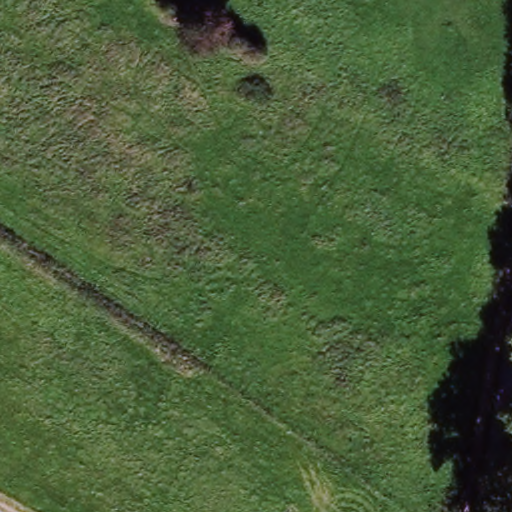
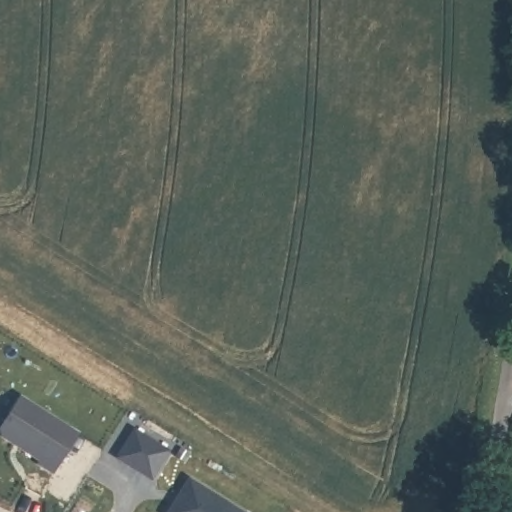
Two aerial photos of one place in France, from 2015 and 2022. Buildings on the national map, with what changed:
new [(43,460),(5,435),(2,429),(22,396),(80,432),(55,471),(42,462),(43,460)]
new [(179,501),(182,495),(180,495),(189,480),(241,512),(169,512),(177,500),(179,501)]

